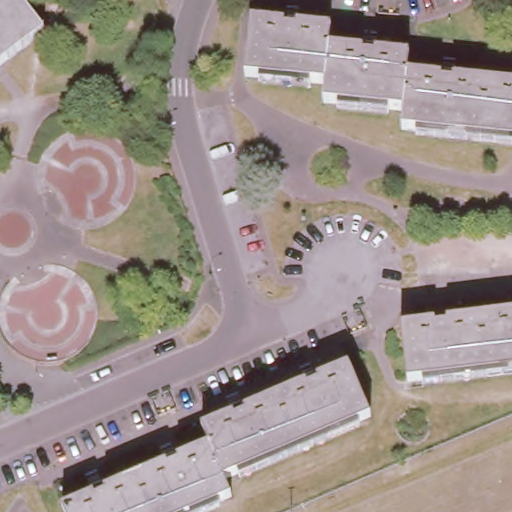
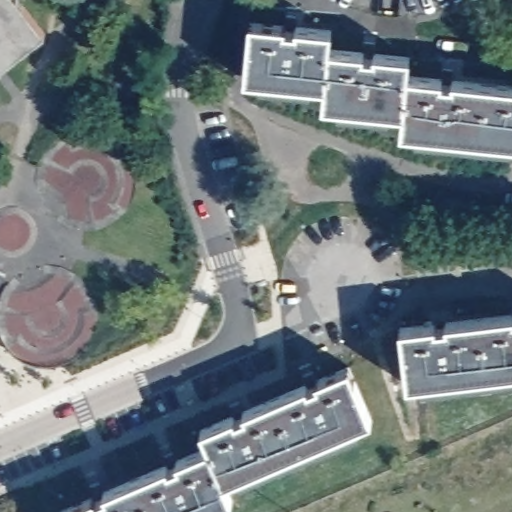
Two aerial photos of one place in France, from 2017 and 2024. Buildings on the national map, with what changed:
unchanged [(0,68),(0,0),(20,0),(45,33),(0,68)]
unchanged [(404,130),(407,111),(327,102),(329,85),(249,78),(254,21),(334,30),(331,46),(413,55),(410,74),(512,83),(512,140),(404,130)]
unchanged [(406,383),(399,329),(512,315),(512,371),(406,383)]
unchanged [(203,512),(64,512),(63,509),(209,446),(203,430),(349,367),(371,420),(225,483),(232,500),(203,512)]

